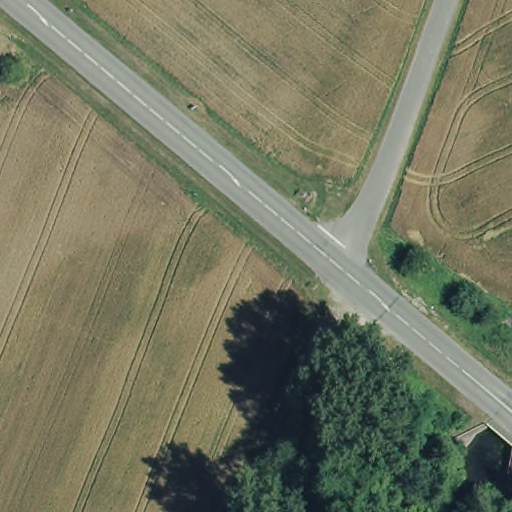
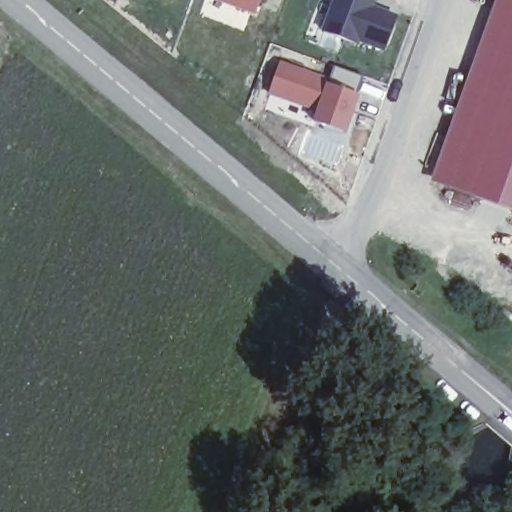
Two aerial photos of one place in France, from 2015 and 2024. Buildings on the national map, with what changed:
new [(257,20),(214,2),(215,0),(263,0),(257,20)]
new [(360,46),(320,31),(332,0),(372,0),(376,1),(374,7),(399,17),(385,52),(361,42),(360,46)]
new [(512,211),(448,187),(512,10),(512,211)]
new [(359,95),(345,135),(314,124),(317,115),(267,95),(280,60),(331,80),(337,66),(365,77),(359,95)]

